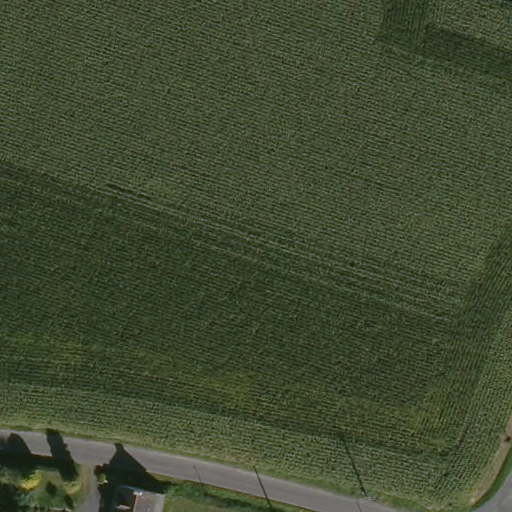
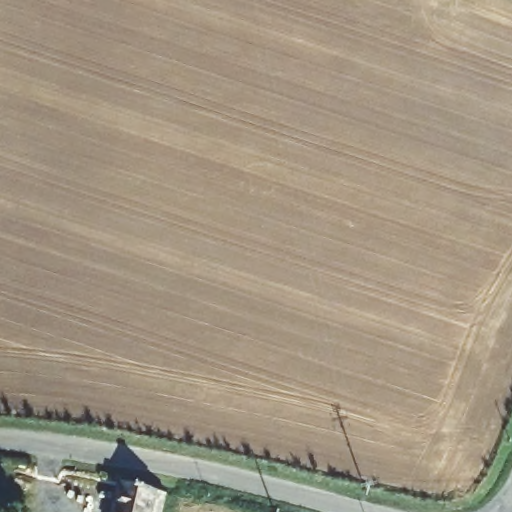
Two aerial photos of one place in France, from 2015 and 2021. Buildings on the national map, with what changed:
unchanged [(166,512),(115,512),(121,484),(170,496),(166,512)]
unchanged [(0,502),(30,502),(30,512),(0,512),(0,502)]

